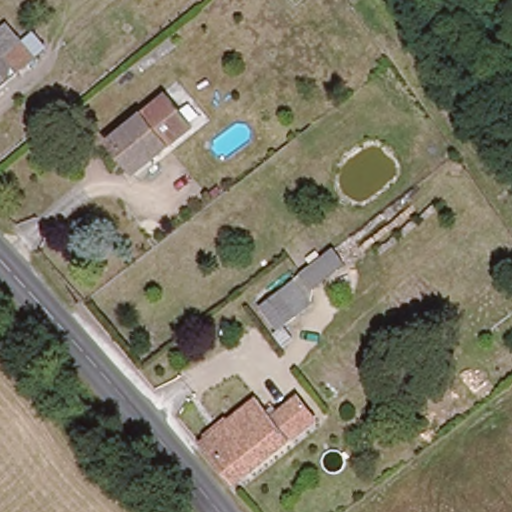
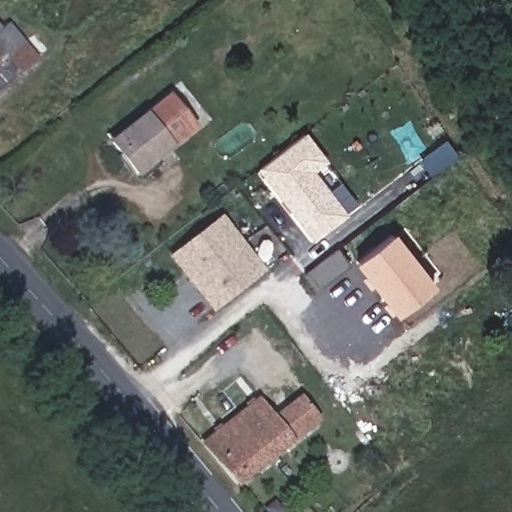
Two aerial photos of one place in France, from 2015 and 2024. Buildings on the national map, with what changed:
unchanged [(1,30),(10,24),(36,56),(0,85),(0,29),(1,30)]
unchanged [(194,125),(137,171),(113,140),(170,94),(194,125)]
new [(305,135),(327,163),(313,173),(347,216),(317,239),(263,169),(305,135)]
new [(175,257),(225,218),(267,273),(217,311),(205,294),(187,273),(175,257)]
new [(354,264),(393,233),(435,287),(395,317),(354,264)]
unchanged [(314,291),(303,277),(335,253),(345,266),(314,291)]
unchanged [(281,332),(265,312),(296,287),(312,307),(281,332)]
unchanged [(198,447),(253,403),(270,424),(295,403),(312,424),(231,489),(198,447)]

